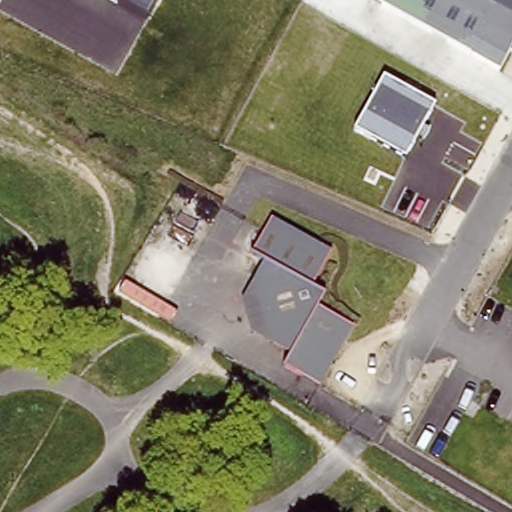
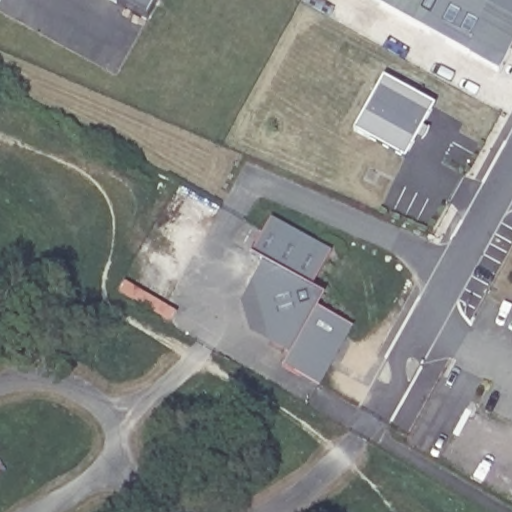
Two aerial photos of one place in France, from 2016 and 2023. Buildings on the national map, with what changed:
unchanged [(146,18),(114,0),(156,0),(146,18)]
unchanged [(512,57),(503,73),(367,0),(512,0),(512,57)]
unchanged [(435,105),(405,158),(355,129),(383,77),(435,105)]
unchanged [(245,300),(256,280),(266,261),(255,253),(275,219),(335,251),(313,290),(320,308),(357,327),(323,389),(287,370),(295,356),(272,344),(253,334),(245,300)]

